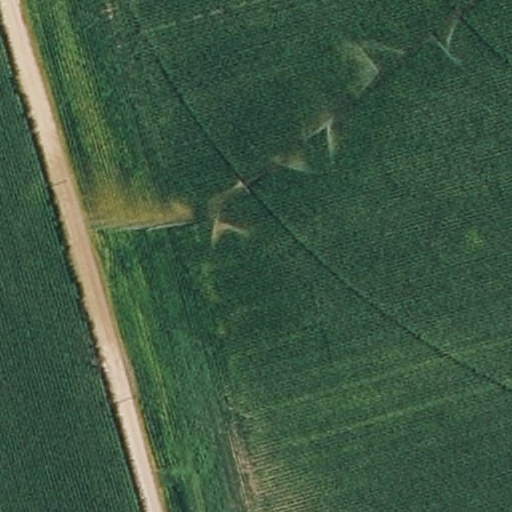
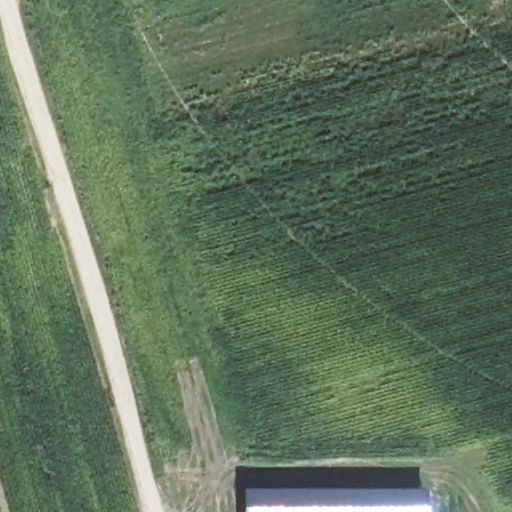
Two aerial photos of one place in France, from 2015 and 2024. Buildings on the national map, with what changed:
new [(423,491),(423,512),(242,512),(241,489),(423,491)]

